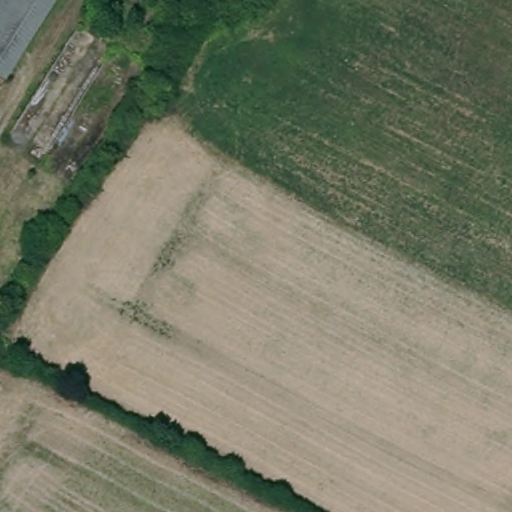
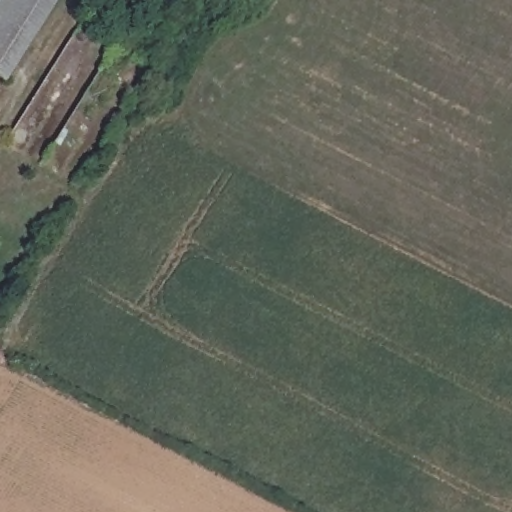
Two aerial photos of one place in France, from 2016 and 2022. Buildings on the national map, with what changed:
unchanged [(8,0),(45,0),(40,7),(1,72),(0,71),(0,14),(8,0)]

